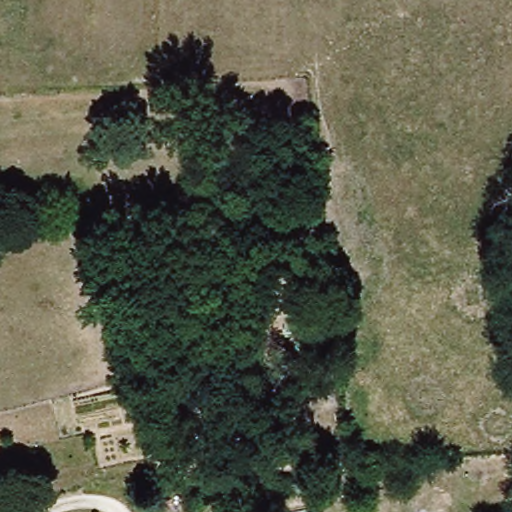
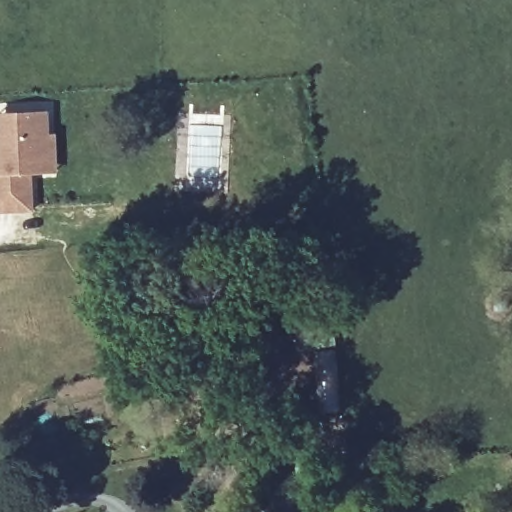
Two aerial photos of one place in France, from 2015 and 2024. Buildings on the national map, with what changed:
new [(51,110),(51,132),(58,132),(58,171),(34,172),(35,210),(0,212),(0,112),(51,110)]

